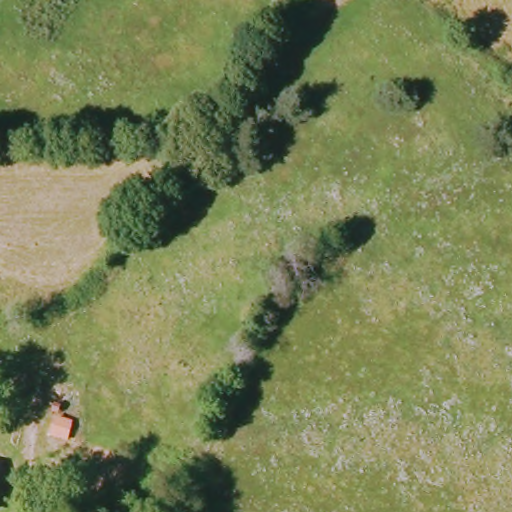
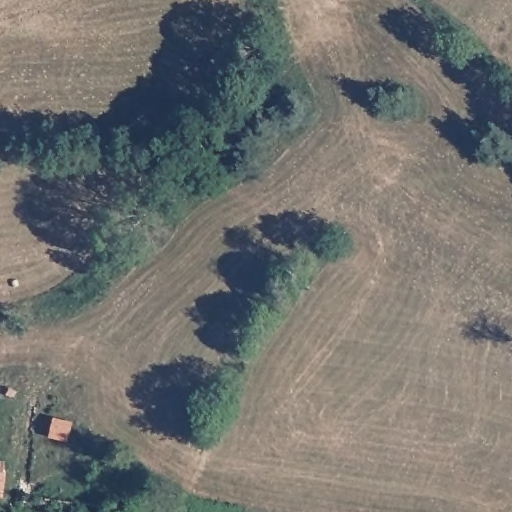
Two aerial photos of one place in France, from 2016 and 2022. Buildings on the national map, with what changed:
unchanged [(42,497),(42,504),(23,502),(23,495),(42,497)]

